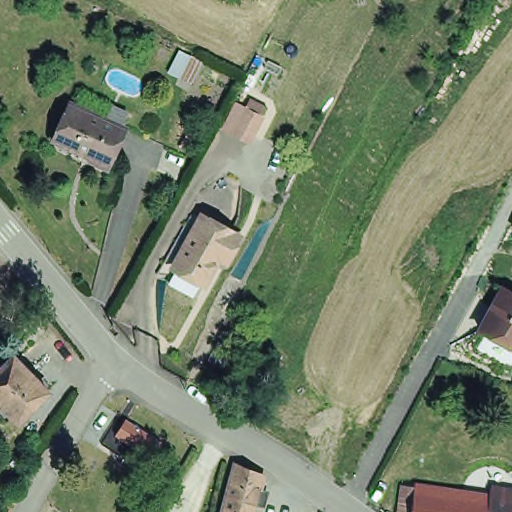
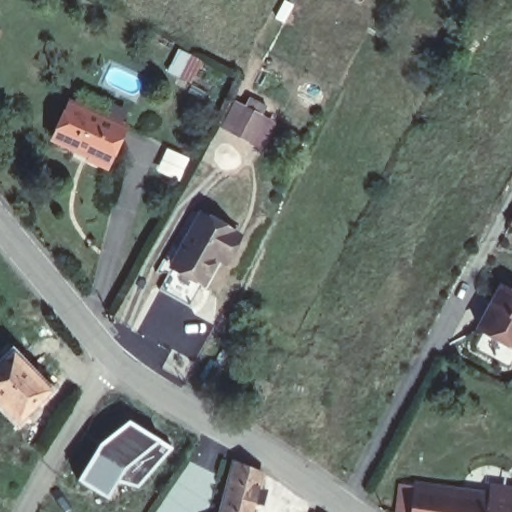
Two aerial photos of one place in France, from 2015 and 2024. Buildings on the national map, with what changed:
unchanged [(203,60),(192,84),(179,78),(190,54),(203,60)]
unchanged [(72,150),(52,140),(67,104),(77,107),(82,94),(120,110),(114,125),(123,129),(110,160),(107,166),(72,150)]
unchanged [(251,134),(232,124),(225,120),(237,97),(245,101),(262,111),(251,134)]
unchanged [(167,268),(175,254),(203,204),(240,224),(247,228),(233,253),(225,249),(222,247),(207,272),(199,286),(167,268)]
unchanged [(512,279),(512,334),(482,318),(505,275),(512,279)]
unchanged [(10,351),(45,389),(16,419),(15,420),(0,406),(0,361),(10,351)]
new [(97,448),(93,444),(126,419),(170,448),(137,487),(117,481),(107,497),(78,479),(97,448)]
unchanged [(262,485),(258,502),(251,500),(248,512),(218,512),(223,489),(222,487),(229,459),(230,460),(249,465),(260,467),(258,472),(255,483),(262,485)]
unchanged [(405,482),(422,485),(495,496),(492,512),(402,512),(405,482)]
unchanged [(495,496),(500,496),(502,484),(512,486),(512,512),(492,512),(495,496)]

